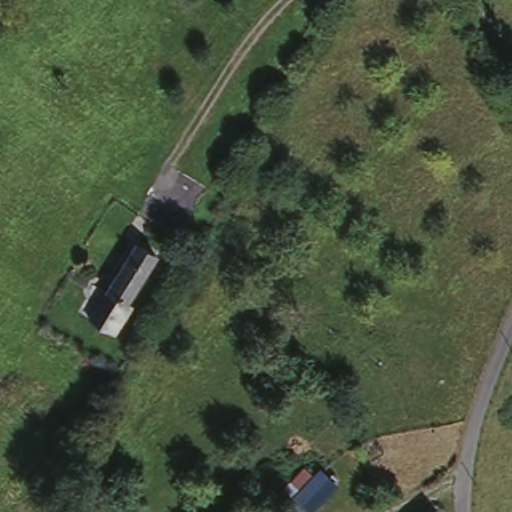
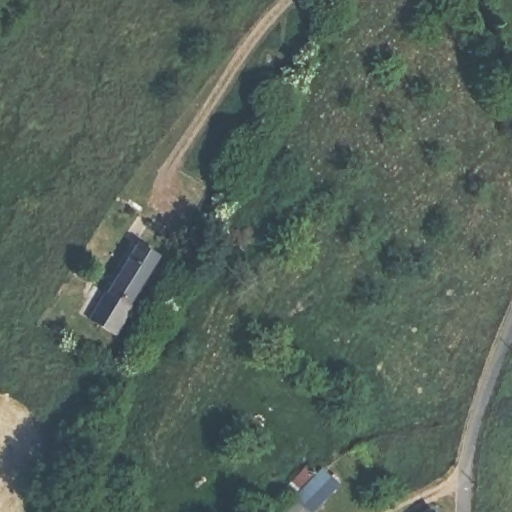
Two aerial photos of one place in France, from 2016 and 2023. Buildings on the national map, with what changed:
unchanged [(129,298),(135,303),(118,334),(90,319),(136,236),(159,249),(129,298)]
unchanged [(308,465),(317,471),(328,463),(343,479),(312,512),(276,512),(293,495),(282,488),(308,465)]
unchanged [(416,512),(420,508),(423,512),(416,512)]

